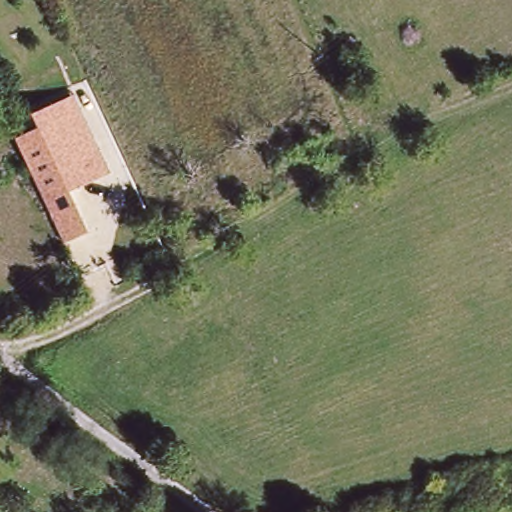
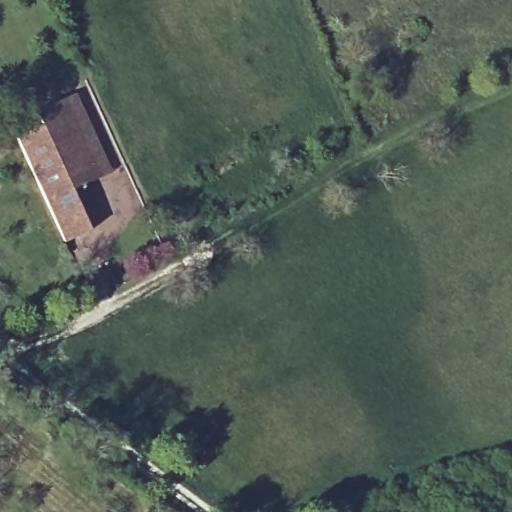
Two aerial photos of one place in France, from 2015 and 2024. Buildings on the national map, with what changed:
unchanged [(73,190),(91,230),(67,241),(19,137),(42,126),(37,112),(76,95),(112,171),(73,190)]

